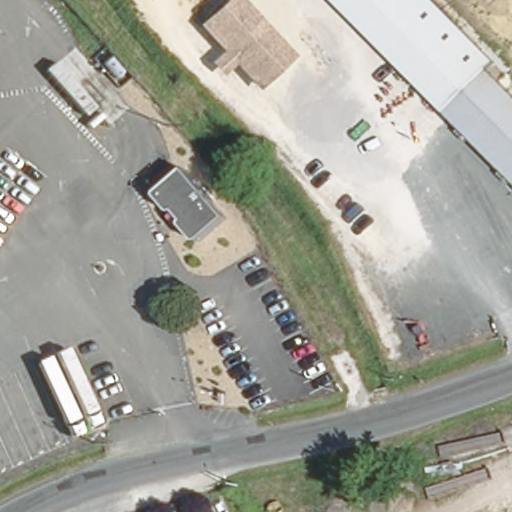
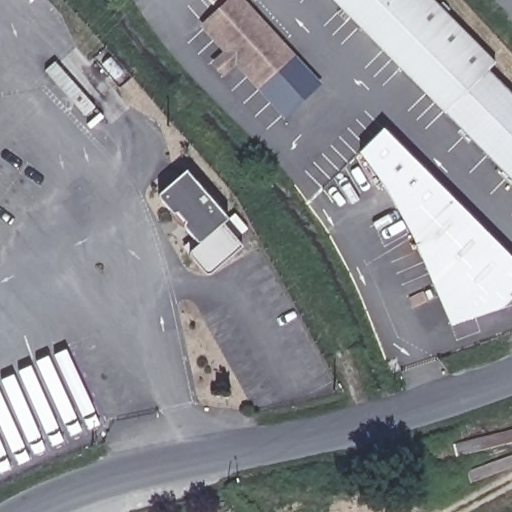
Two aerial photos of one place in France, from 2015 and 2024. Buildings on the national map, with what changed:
unchanged [(226,50),(204,24),(232,0),(242,0),(291,58),(258,87),(234,59),(219,73),(211,63),(226,50)]
unchanged [(446,110),(442,114),(331,0),(432,0),(495,64),(490,69),(483,76),(446,110)]
new [(321,85),(283,118),(258,87),(291,58),(321,85)]
unchanged [(490,69),(512,93),(512,182),(446,110),(490,69)]
new [(512,304),(449,324),(411,234),(384,187),(358,151),(382,129),(512,260),(512,304)]
unchanged [(195,242),(152,194),(182,168),(224,216),(195,242)]

